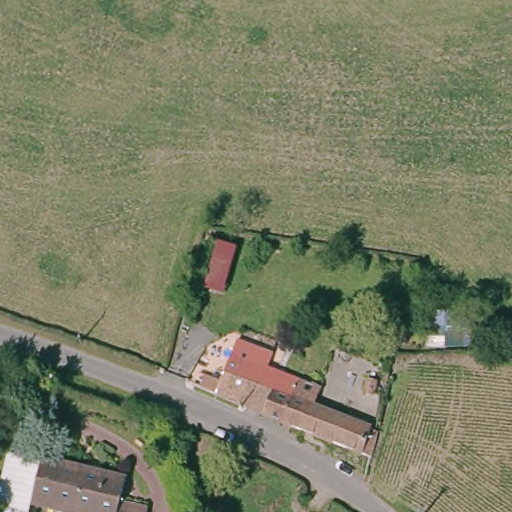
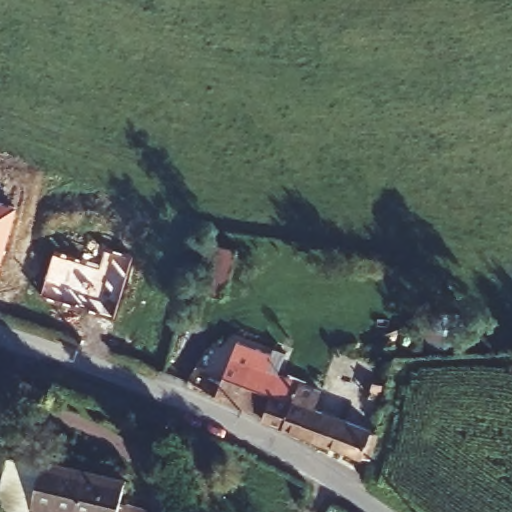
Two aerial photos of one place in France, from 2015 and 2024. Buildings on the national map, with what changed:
new [(0,198),(19,204),(0,269),(0,198)]
new [(102,264),(107,244),(134,251),(115,317),(41,296),(55,250),(102,264)]
unchanged [(298,425),(300,422),(247,404),(199,383),(204,373),(227,382),(234,368),(235,364),(241,352),(268,362),(274,365),(315,382),(310,400),(374,425),(364,452),(298,425)]
unchanged [(27,510),(0,503),(0,481),(9,446),(40,453),(42,450),(132,471),(127,493),(160,502),(157,512),(90,512),(30,497),(27,510)]

